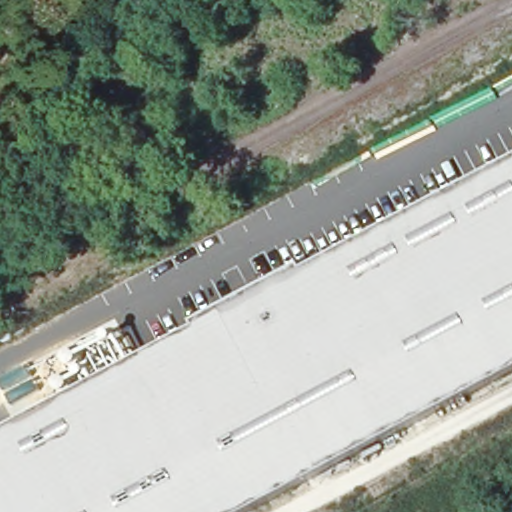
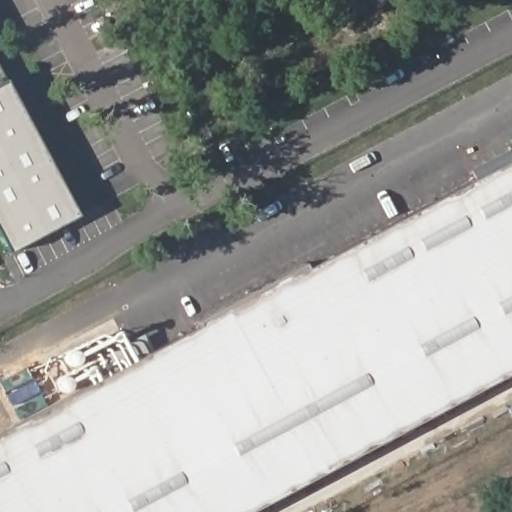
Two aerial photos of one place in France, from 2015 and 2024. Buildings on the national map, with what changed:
new [(82,220),(12,257),(0,234),(0,63),(11,84),(82,220)]
unchanged [(0,512),(0,427),(201,320),(199,315),(308,255),(311,262),(512,155),(512,367),(240,512),(0,512)]

